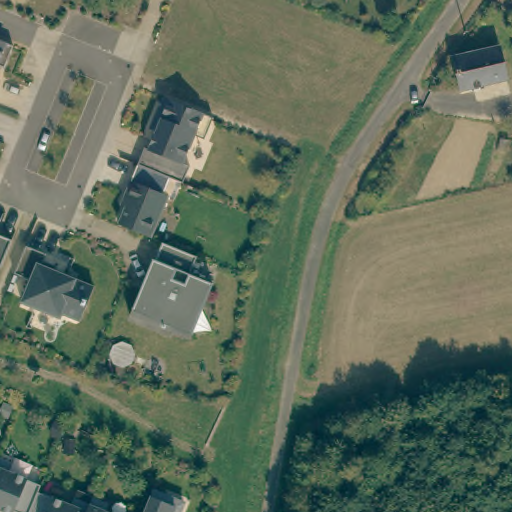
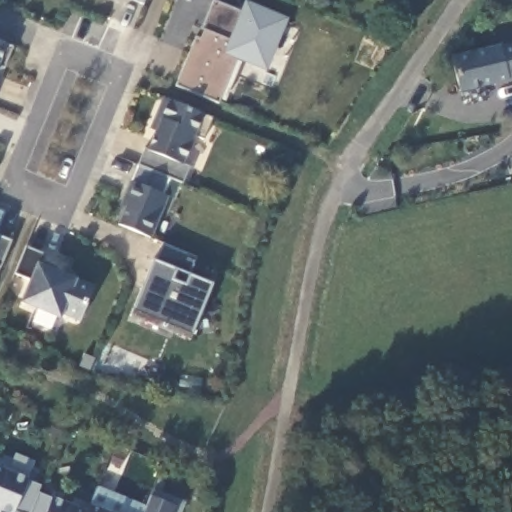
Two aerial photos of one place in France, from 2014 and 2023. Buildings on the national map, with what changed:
new [(196,37),(201,40),(206,30),(202,29),(215,1),(241,12),(245,1),(287,20),(266,72),(236,60),(219,104),(177,85),(196,37)]
unchanged [(5,64),(0,62),(0,37),(14,42),(5,64)]
unchanged [(507,85),(461,95),(452,62),(496,52),(507,85)]
unchanged [(155,115),(150,114),(159,93),(197,109),(199,110),(208,114),(199,135),(190,131),(178,160),(185,162),(178,179),(165,174),(157,171),(144,165),(132,160),(140,144),(143,145),(155,115)]
unchanged [(144,165),(157,171),(165,174),(158,190),(163,192),(145,234),(114,220),(124,195),(119,194),(132,160),(144,165)]
unchanged [(0,258),(0,238),(7,241),(0,258)]
unchanged [(150,262),(157,244),(192,257),(185,275),(208,285),(196,314),(190,312),(181,334),(126,312),(147,261),(150,262)]
unchanged [(41,255),(39,261),(52,267),(50,272),(89,287),(75,321),(57,313),(55,318),(16,302),(25,281),(10,275),(21,246),(41,255)]
unchanged [(1,510),(1,512),(0,512),(0,461),(11,465),(9,472),(41,486),(38,493),(36,497),(30,512),(5,512),(1,510)]
unchanged [(152,490),(184,503),(180,512),(144,512),(152,490)]
unchanged [(36,497),(38,493),(71,506),(74,500),(90,506),(87,512),(30,512),(36,497)]
unchanged [(92,499),(109,505),(106,512),(87,512),(90,506),(92,499)]

